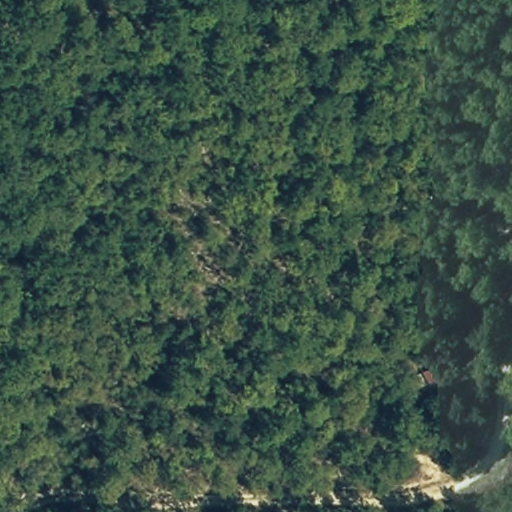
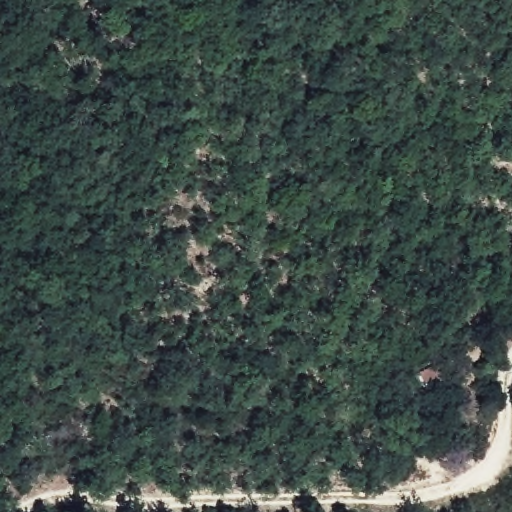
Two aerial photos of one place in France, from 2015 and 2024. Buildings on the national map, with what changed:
unchanged [(425,385),(420,370),(443,360),(452,374),(425,385)]

